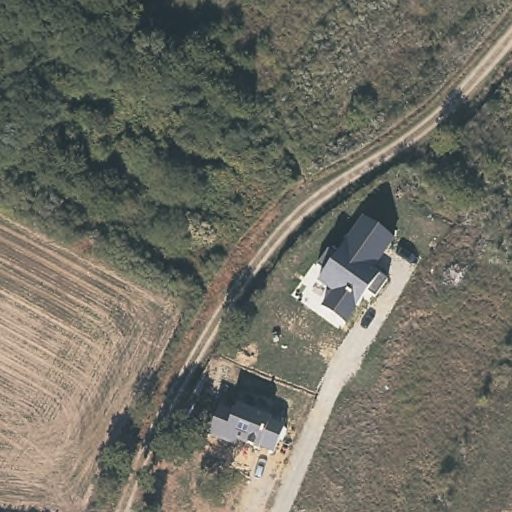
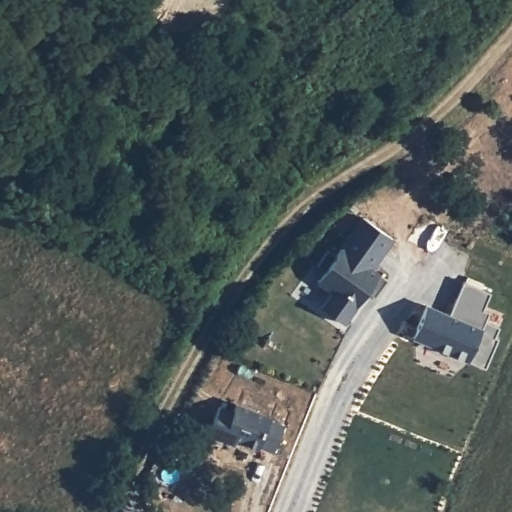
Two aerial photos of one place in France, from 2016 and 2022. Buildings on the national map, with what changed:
unchanged [(325,270),(317,263),(328,247),(336,252),(361,219),(392,238),(372,267),(386,279),(375,295),(367,291),(347,324),(321,305),(332,291),(317,281),(325,270)]
new [(428,303),(451,312),(463,280),(490,290),(482,309),(489,312),(485,320),(501,326),(496,336),(499,338),(487,366),(467,357),(467,361),(413,339),(428,303)]
unchanged [(285,424),(274,453),(259,449),(237,441),(234,445),(210,435),(211,431),(222,405),(235,411),(237,403),(271,417),(285,424)]

